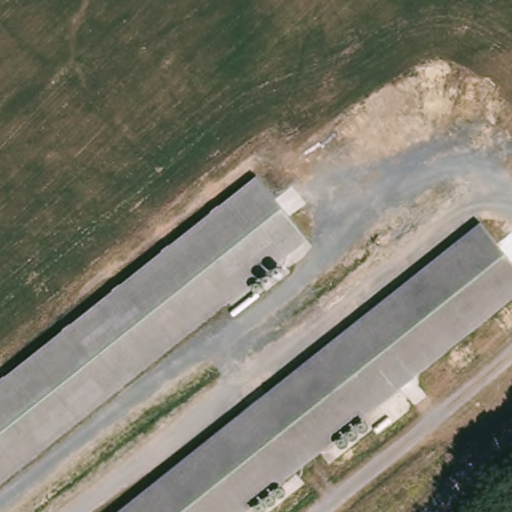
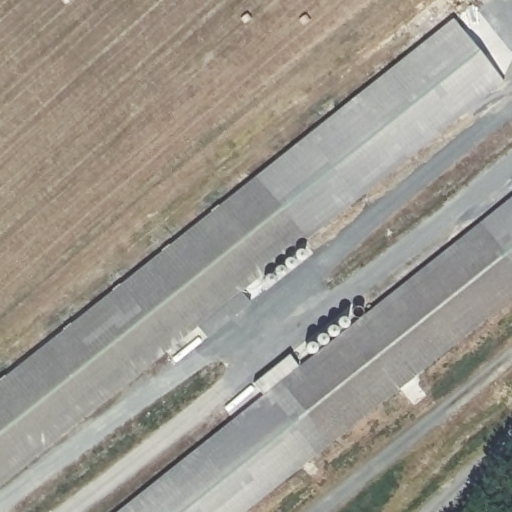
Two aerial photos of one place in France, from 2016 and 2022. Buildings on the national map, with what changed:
new [(453,19),(503,82),(305,240),(254,176),(453,19)]
unchanged [(279,266),(286,274),(268,290),(260,281),(241,299),(0,485),(0,380),(254,176),(309,246),(279,266)]
new [(512,196),(512,267),(477,224),(512,196)]
unchanged [(512,267),(512,298),(243,512),(113,512),(474,222),(512,267)]

